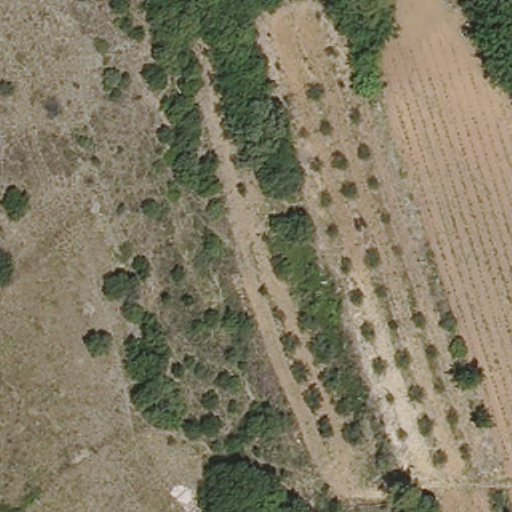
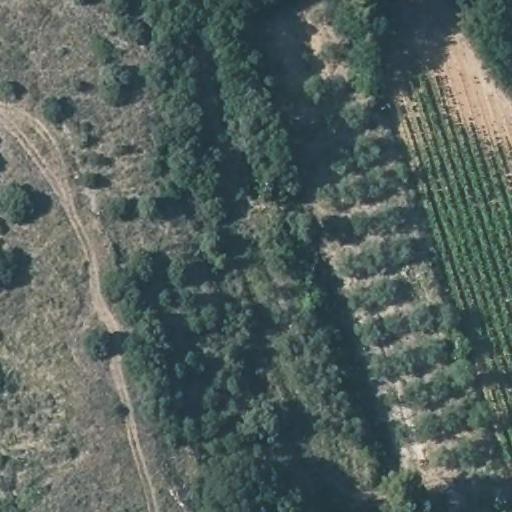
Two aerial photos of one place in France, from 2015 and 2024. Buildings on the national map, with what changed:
[]

